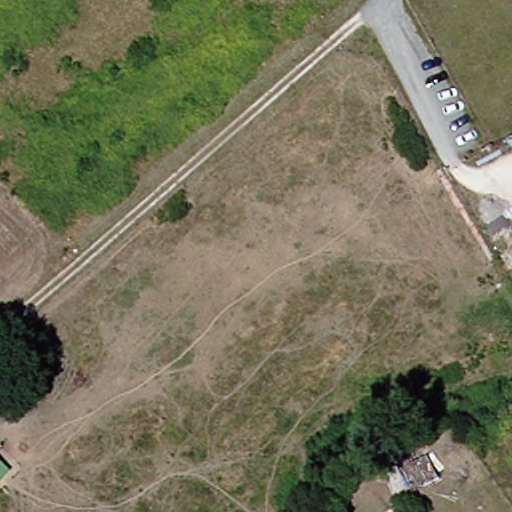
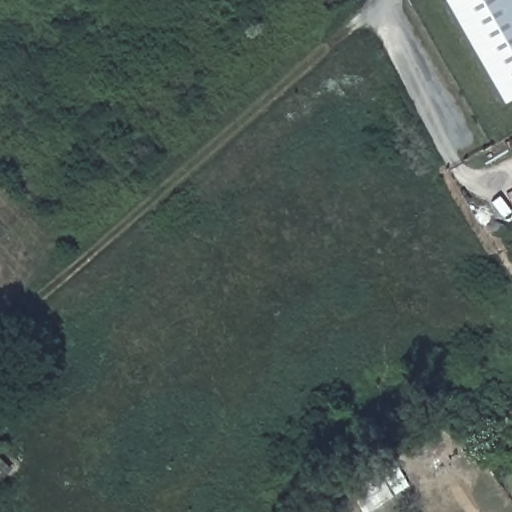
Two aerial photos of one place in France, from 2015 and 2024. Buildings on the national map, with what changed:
new [(453,0),(512,0),(512,104),(508,107),(447,4),(453,0)]

